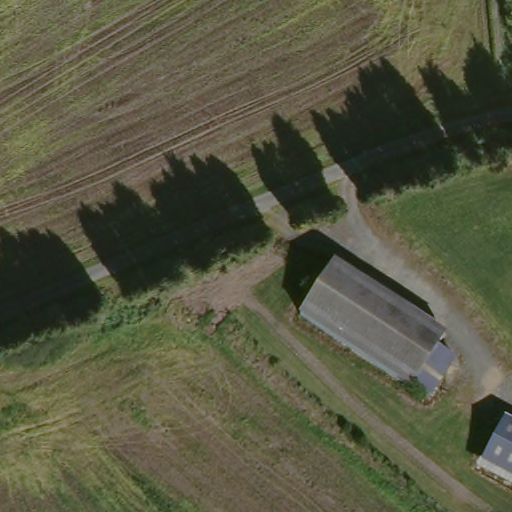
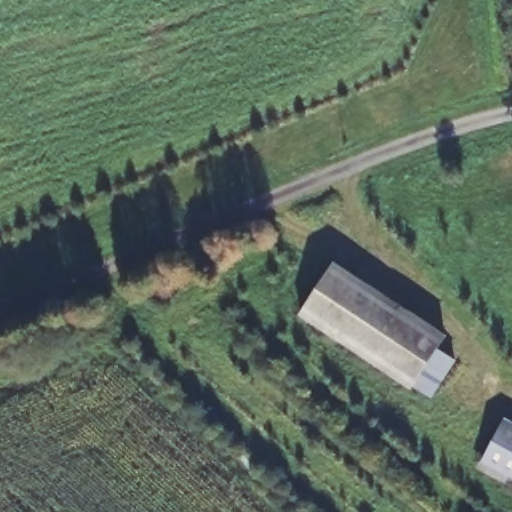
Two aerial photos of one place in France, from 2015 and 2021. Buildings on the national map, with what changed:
unchanged [(450,334),(441,349),(456,357),(431,400),(301,314),(336,259),(450,334)]
unchanged [(504,416),(512,420),(512,486),(478,468),(504,416)]

